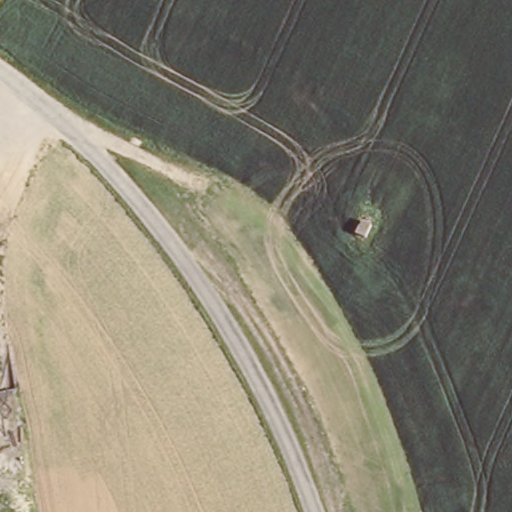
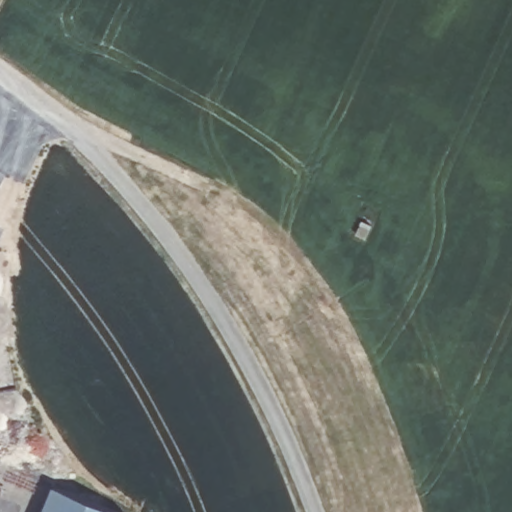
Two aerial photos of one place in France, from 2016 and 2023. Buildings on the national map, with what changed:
new [(110,512),(43,512),(54,488),(110,512)]

